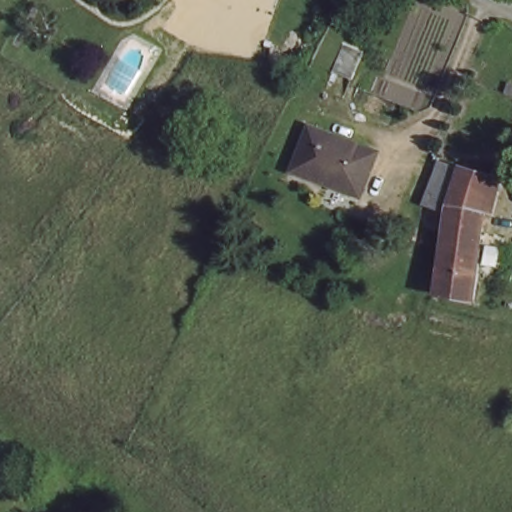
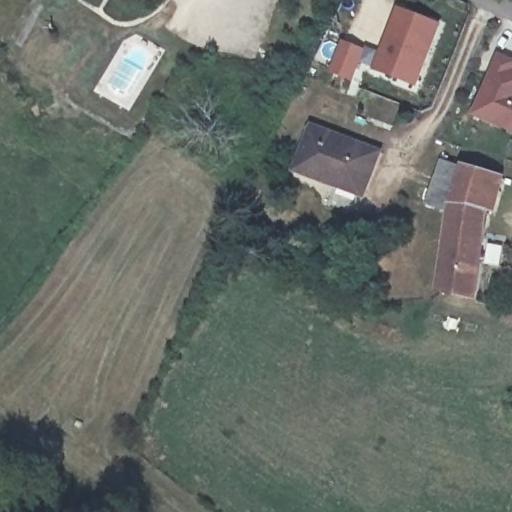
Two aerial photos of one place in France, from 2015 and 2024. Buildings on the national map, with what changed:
new [(372,72),(398,9),(443,25),(419,89),(372,72)]
new [(497,53),(512,59),(512,133),(471,116),(497,53)]
unchanged [(310,127),(379,146),(368,187),(332,177),(327,184),(300,177),(310,127)]
unchanged [(452,213),(428,207),(442,160),(466,167),(452,213)]
unchanged [(507,176),(504,191),(494,192),(488,210),(485,301),(453,298),(451,273),(449,223),(452,213),(466,167),(507,176)]

